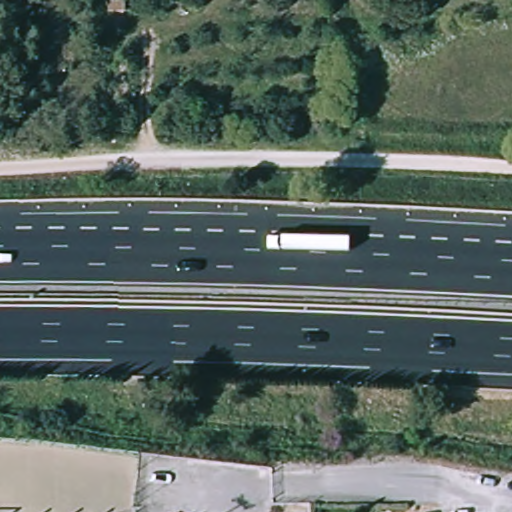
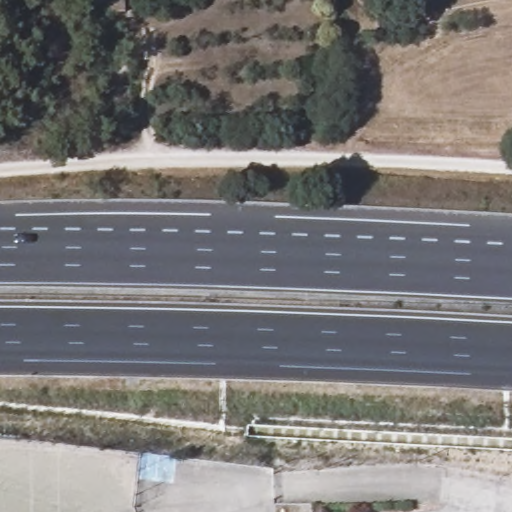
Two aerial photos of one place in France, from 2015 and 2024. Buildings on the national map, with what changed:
unchanged [(110,12),(110,0),(124,0),(124,11),(110,12)]

